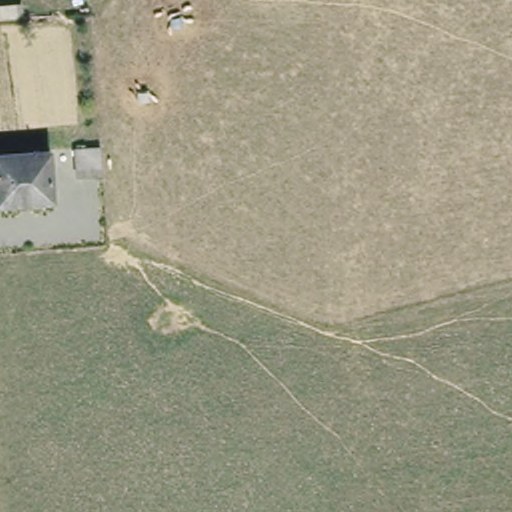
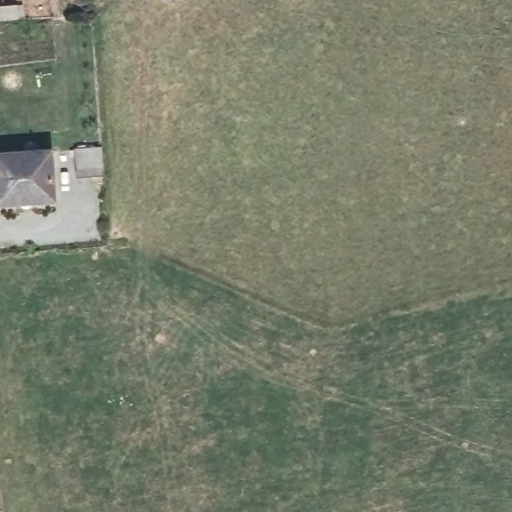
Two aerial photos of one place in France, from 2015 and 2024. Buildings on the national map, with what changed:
unchanged [(0,6),(16,4),(18,18),(0,20),(0,6)]
unchanged [(50,195),(0,200),(0,146),(45,141),(50,195)]
unchanged [(76,176),(75,147),(100,145),(103,175),(76,176)]

